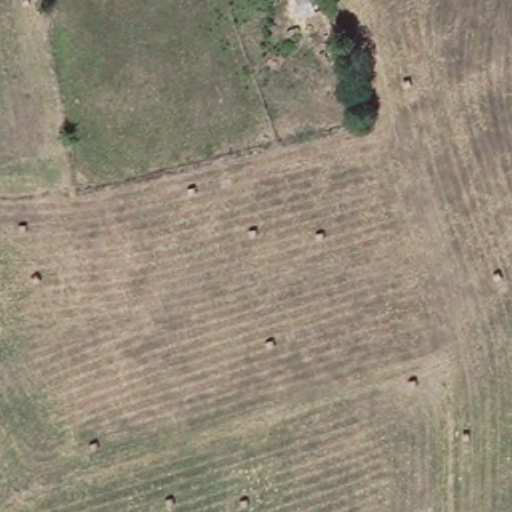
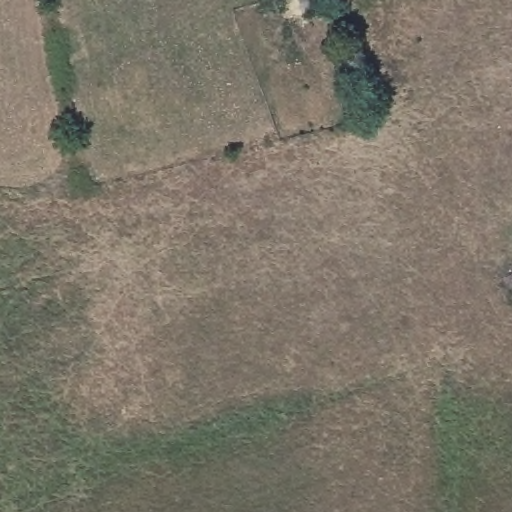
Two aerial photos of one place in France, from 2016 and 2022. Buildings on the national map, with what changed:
unchanged [(310,35),(302,0),(320,0),(327,26),(310,35)]

